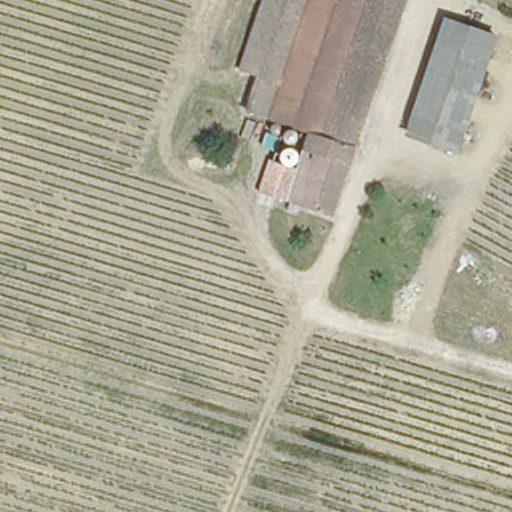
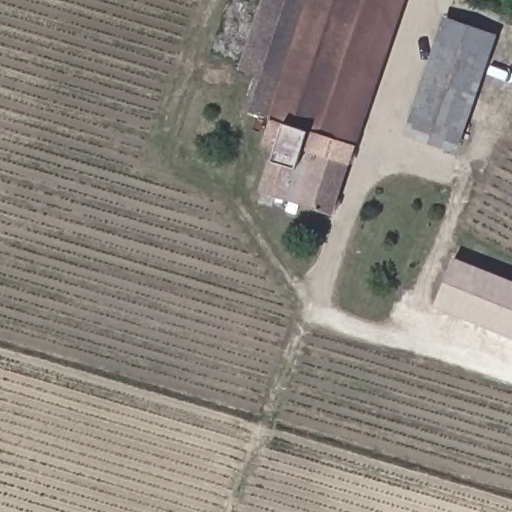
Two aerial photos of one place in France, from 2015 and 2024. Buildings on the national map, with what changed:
unchanged [(271,119),(281,88),(242,75),(269,0),(408,0),(334,216),(273,195),(280,173),(266,168),(275,138),(281,122),(271,119)]
unchanged [(406,133),(413,115),(446,21),(493,36),(460,131),(453,151),(406,133)]
new [(455,257),(512,279),(512,337),(435,305),(455,257)]

